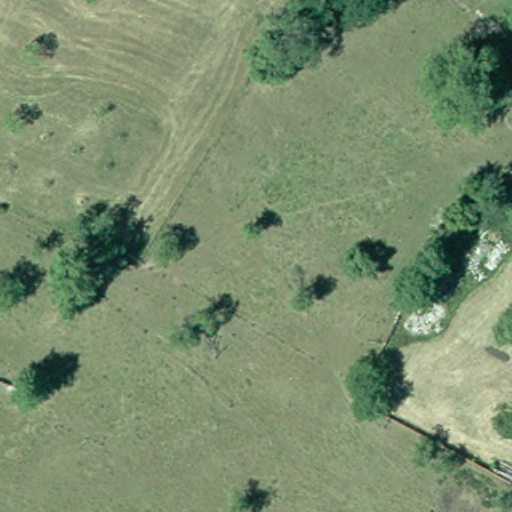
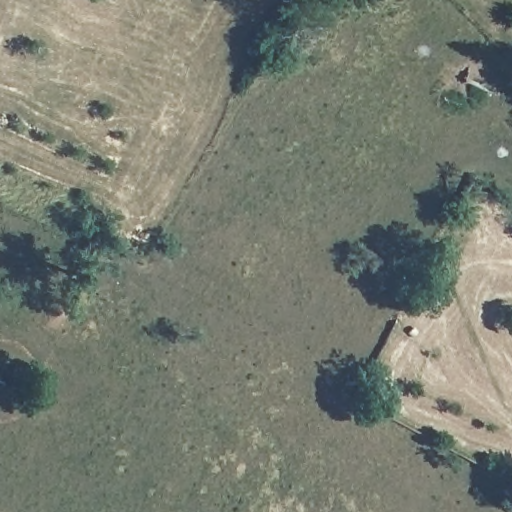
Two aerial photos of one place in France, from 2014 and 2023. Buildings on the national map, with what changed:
[]

